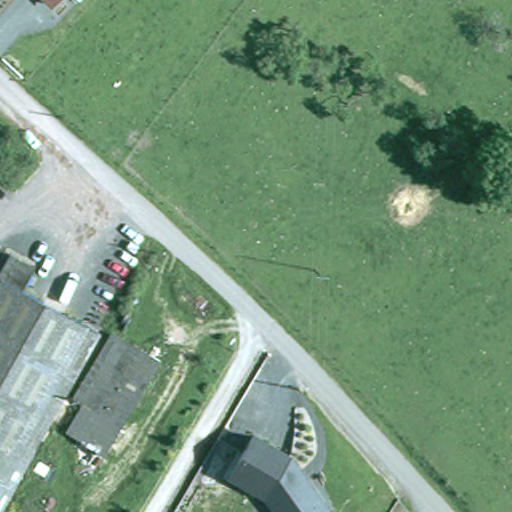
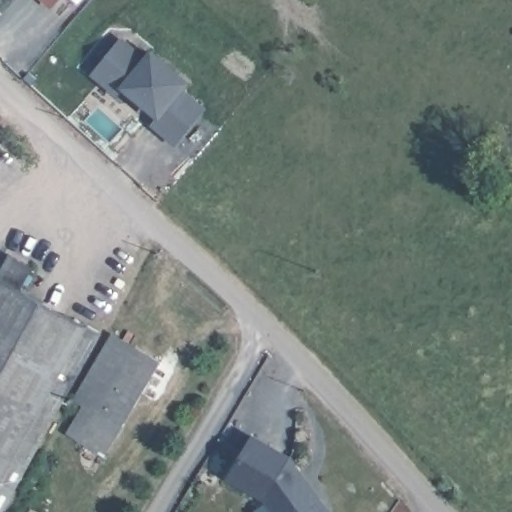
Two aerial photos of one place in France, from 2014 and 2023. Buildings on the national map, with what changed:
unchanged [(44,0),(47,0),(46,2),(44,0)]
new [(149,52),(152,47),(192,81),(187,89),(207,106),(176,147),(149,126),(156,116),(124,91),(117,99),(90,76),(121,36),(149,52)]
unchanged [(30,262),(17,286),(95,329),(0,500),(0,251),(2,247),(30,262)]
unchanged [(162,358),(105,457),(70,436),(85,401),(77,397),(114,330),(162,358)]
unchanged [(292,459),(329,512),(267,512),(260,502),(222,482),(254,432),(292,459)]

